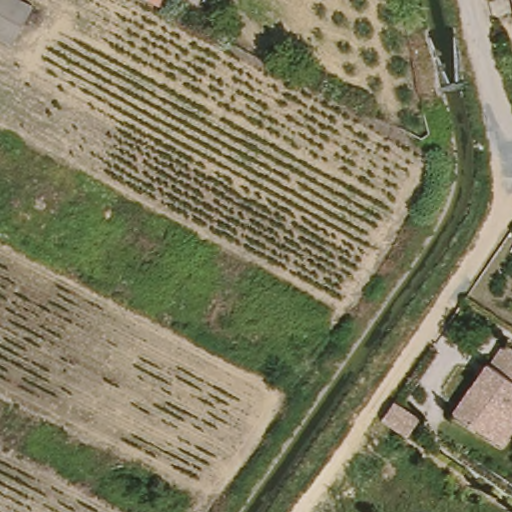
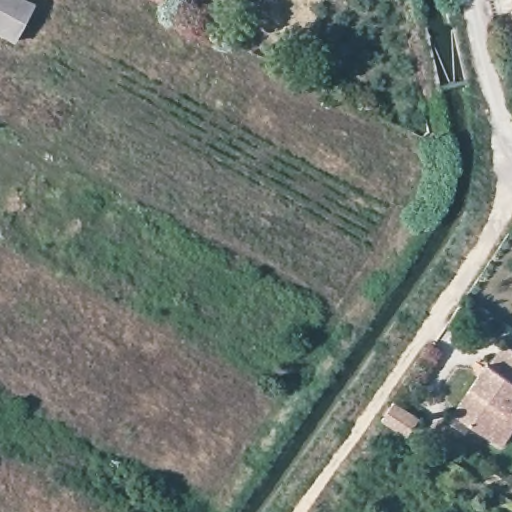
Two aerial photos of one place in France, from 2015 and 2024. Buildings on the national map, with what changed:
unchanged [(0,35),(0,0),(22,0),(32,5),(11,41),(0,35)]
unchanged [(500,442),(487,433),(451,409),(485,359),(487,361),(502,340),(512,346),(512,423),(500,442)]
unchanged [(402,413),(427,430),(415,448),(390,431),(402,413)]

